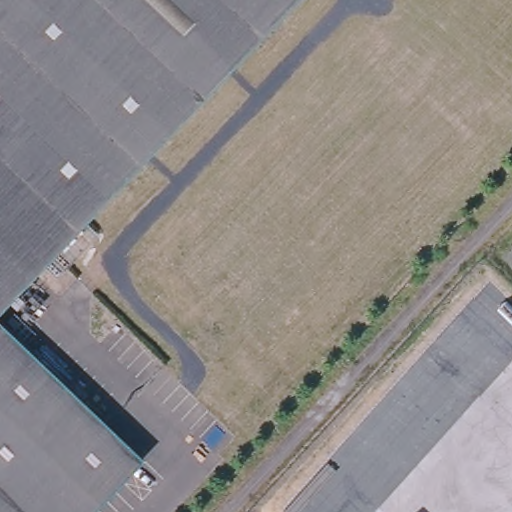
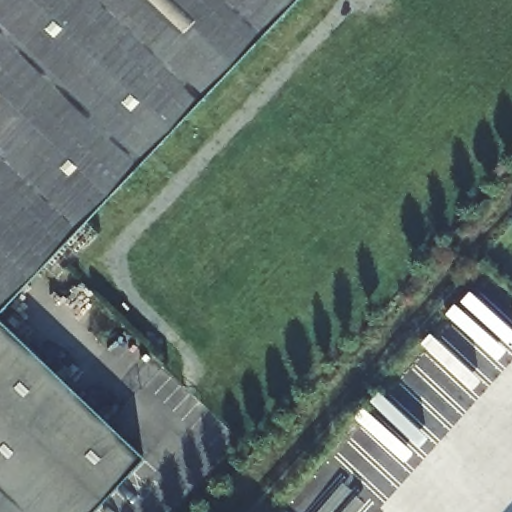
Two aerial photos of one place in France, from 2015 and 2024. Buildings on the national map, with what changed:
unchanged [(81,219),(41,261),(0,308),(0,0),(287,0),(81,219)]
unchanged [(81,219),(98,235),(58,277),(41,261),(81,219)]
unchanged [(145,453),(90,512),(0,512),(0,319),(145,453)]

